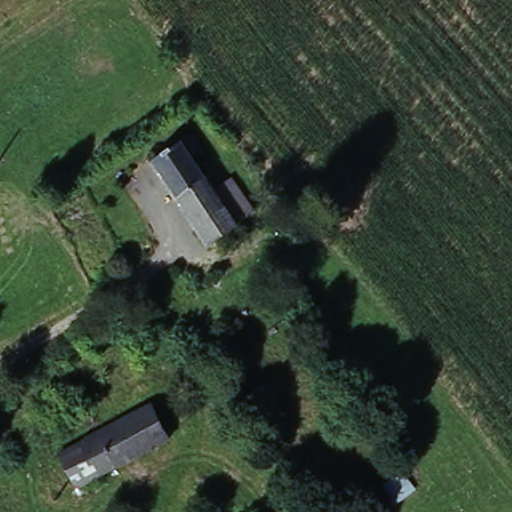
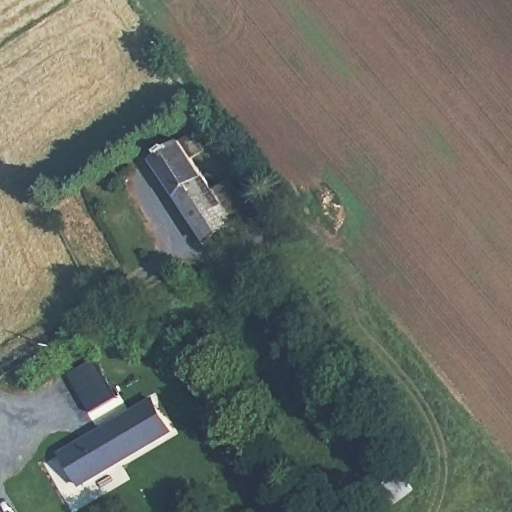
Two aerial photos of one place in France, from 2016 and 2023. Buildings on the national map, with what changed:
unchanged [(179,144),(212,190),(230,180),(251,213),(209,244),(151,163),(179,144)]
new [(91,360),(110,396),(84,410),(66,373),(91,360)]
unchanged [(156,404),(173,435),(80,485),(63,455),(156,404)]
unchanged [(382,490),(408,471),(421,489),(394,507),(382,490)]

